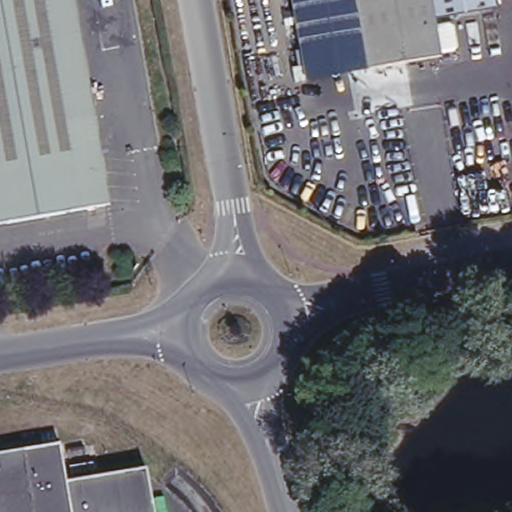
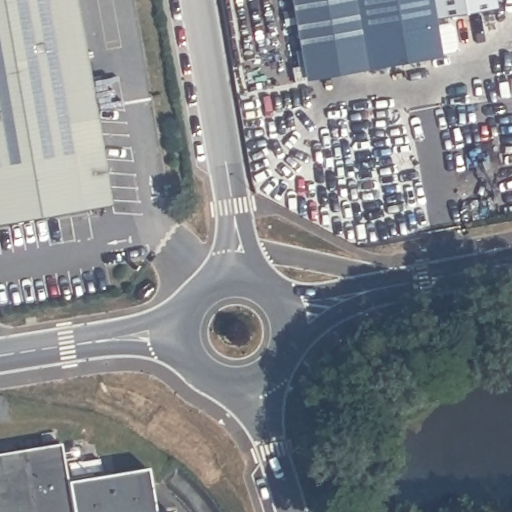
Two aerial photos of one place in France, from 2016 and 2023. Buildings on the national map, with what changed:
unchanged [(0,234),(0,0),(74,0),(109,216),(0,234)]
unchanged [(363,68),(305,78),(300,51),(291,0),(429,0),(437,56),(363,68)]
unchanged [(429,0),(495,0),(496,9),(432,20),(429,0)]
unchanged [(59,472),(140,457),(151,512),(0,512),(0,454),(56,444),(59,472)]

